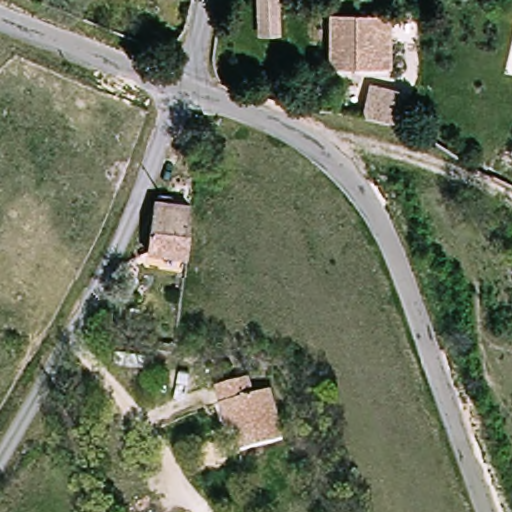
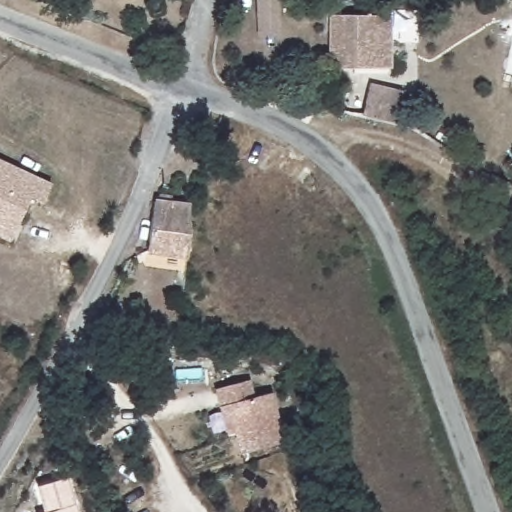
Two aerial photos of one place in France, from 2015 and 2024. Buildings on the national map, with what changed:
demolished [(258,0),(257,10),(237,9),(238,0),(258,0)]
unchanged [(258,20),(260,0),(280,0),(278,21),(277,40),(257,39),(258,20)]
unchanged [(385,74),(360,74),(360,64),(333,65),(331,15),(374,14),(385,14),(385,74)]
unchanged [(372,105),(375,81),(392,84),(389,111),(372,105)]
new [(42,202),(30,196),(9,240),(0,236),(0,160),(50,184),(42,202)]
unchanged [(150,198),(158,193),(167,195),(170,202),(181,204),(180,232),(177,255),(143,252),(146,226),(150,198)]
unchanged [(220,407),(213,388),(245,378),(251,395),(267,389),(285,439),(243,454),(235,432),(227,433),(220,407)]
new [(36,486),(66,478),(74,504),(77,512),(44,512),(36,486)]

